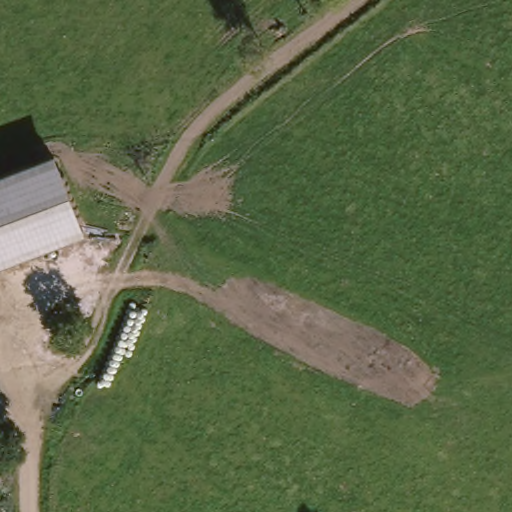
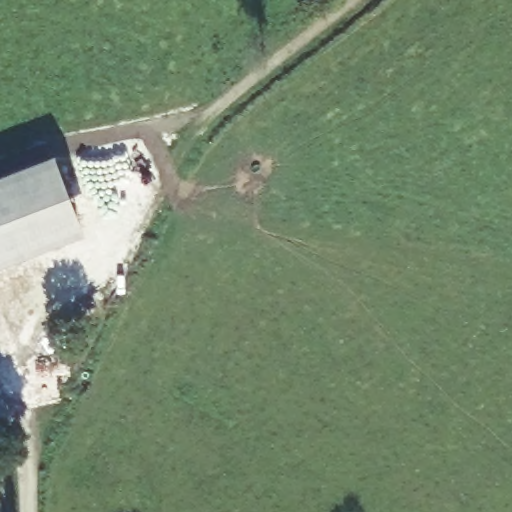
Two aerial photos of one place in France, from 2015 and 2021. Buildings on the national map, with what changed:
unchanged [(0,177),(55,156),(85,234),(0,267),(0,177)]

